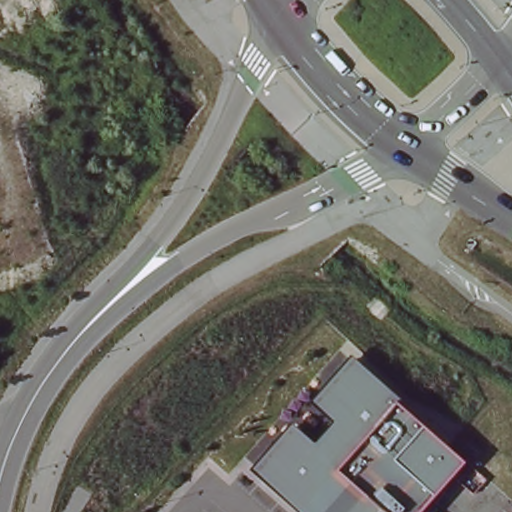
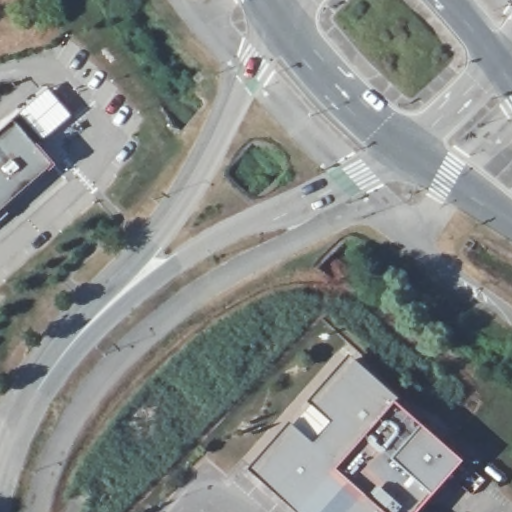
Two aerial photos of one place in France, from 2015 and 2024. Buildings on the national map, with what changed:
new [(13,119),(47,89),(70,115),(37,145),(53,164),(5,207),(8,212),(0,220),(0,130),(13,119)]
unchanged [(466,461),(423,512),(296,512),(248,469),(289,422),(313,443),(330,422),(306,402),(349,356),(466,461)]

